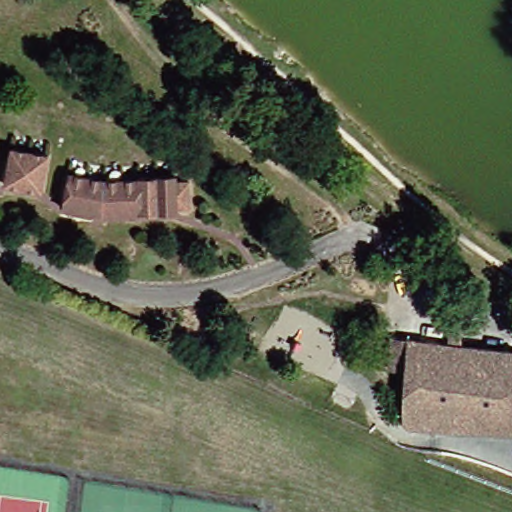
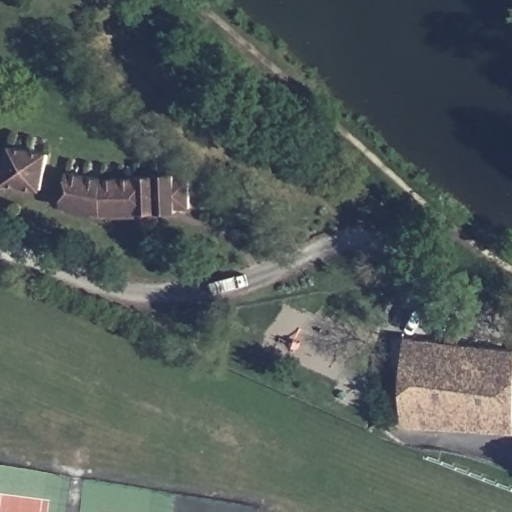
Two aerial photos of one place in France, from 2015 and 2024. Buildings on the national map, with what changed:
unchanged [(43,157),(36,194),(0,188),(0,184),(6,151),(43,157)]
unchanged [(99,175),(135,175),(135,172),(172,171),(172,176),(187,176),(187,205),(174,205),(174,208),(95,210),(60,203),(65,169),(99,175)]
unchanged [(512,378),(505,377),(501,437),(396,428),(399,345),(472,351),(473,343),(493,346),(507,347),(507,360),(512,361),(512,378)]

